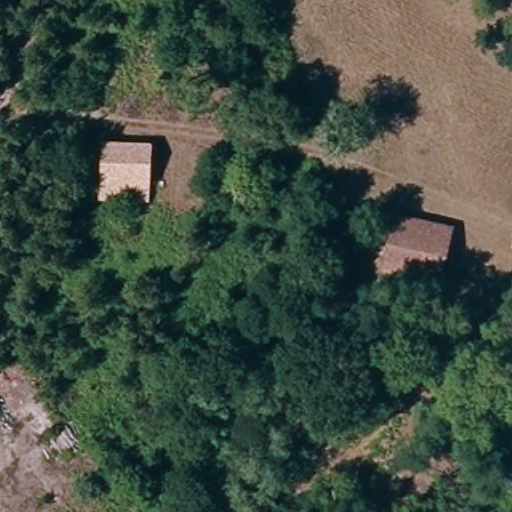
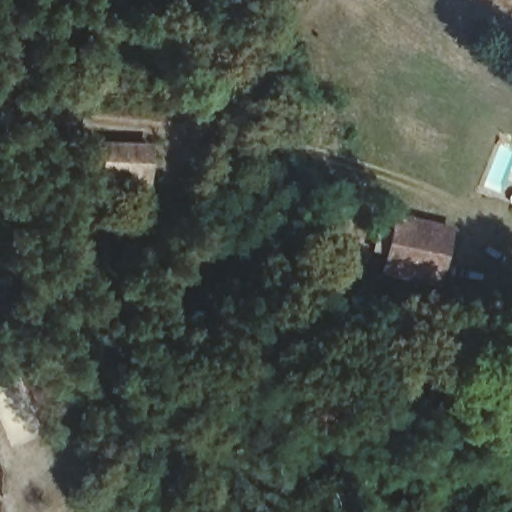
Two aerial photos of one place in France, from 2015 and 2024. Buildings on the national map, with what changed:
unchanged [(149,155),(145,193),(94,189),(98,151),(149,155)]
unchanged [(384,243),(391,215),(452,229),(444,256),(384,243)]
unchanged [(444,256),(439,288),(375,280),(384,243),(444,256)]

